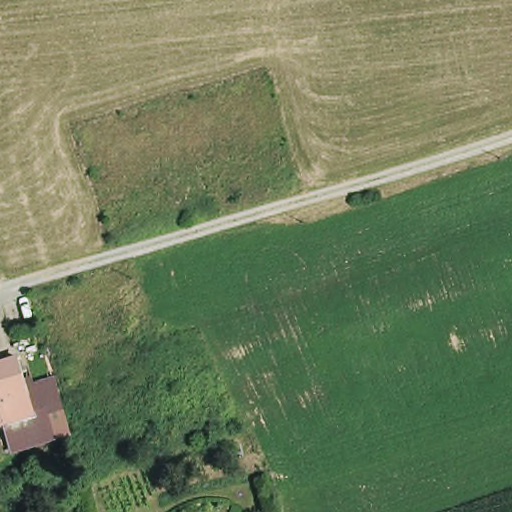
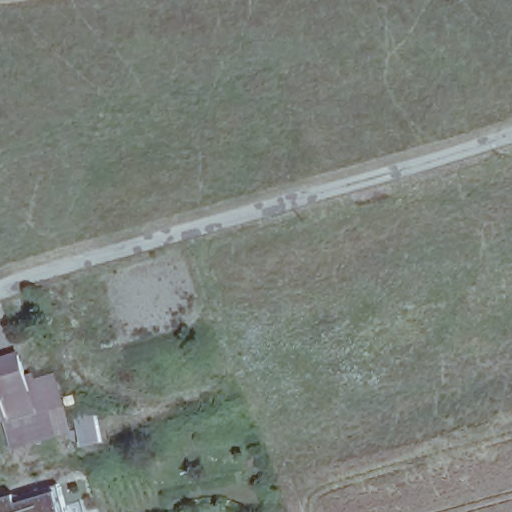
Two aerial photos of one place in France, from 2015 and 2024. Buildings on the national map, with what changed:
unchanged [(28,376),(30,390),(4,398),(9,415),(2,417),(0,418),(0,360),(20,354),(28,376)]
unchanged [(4,398),(30,390),(28,376),(57,367),(67,401),(47,404),(56,433),(10,445),(2,417),(9,415),(4,398)]
new [(14,492),(16,499),(57,487),(65,512),(0,512),(0,497),(14,492)]

